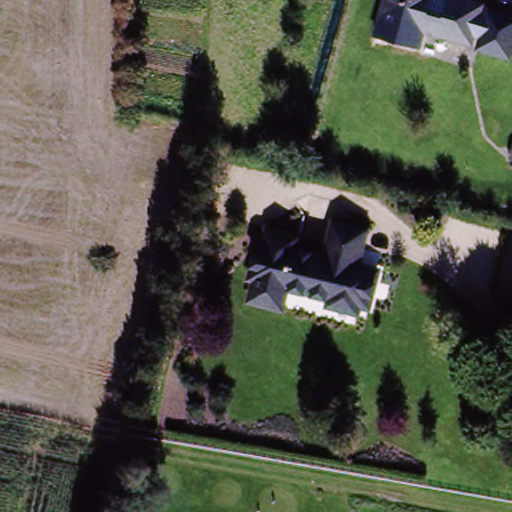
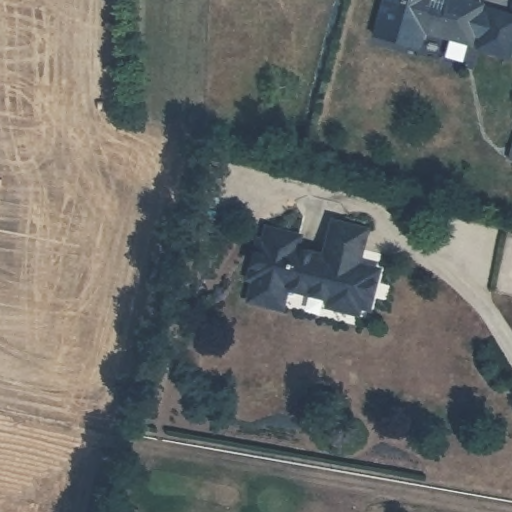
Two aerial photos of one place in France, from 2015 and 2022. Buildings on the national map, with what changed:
unchanged [(482,7),(487,9),(489,4),(512,11),(512,49),(511,53),(478,44),(481,32),(475,30),(473,40),(425,27),(423,31),(379,19),(384,0),(483,0),(482,7)]
unchanged [(507,159),(512,143),(512,161),(507,159)]
unchanged [(251,295),(255,281),(257,275),(250,273),(262,235),(266,236),(271,222),(301,230),(297,244),(327,252),(332,233),(336,217),(368,227),(364,242),(358,262),(380,268),(369,304),(361,302),(356,310),(330,302),(330,294),(288,283),(286,290),(282,304),(251,295)]

